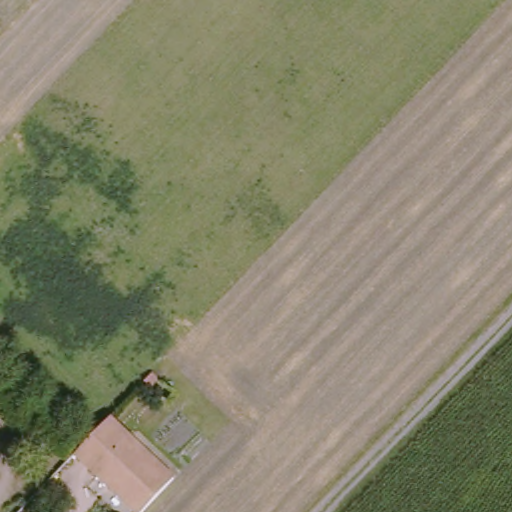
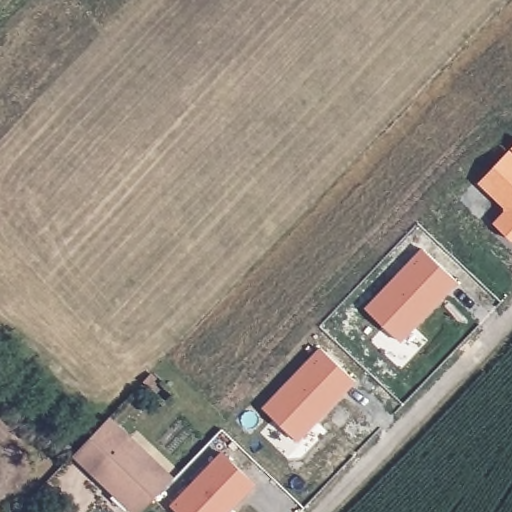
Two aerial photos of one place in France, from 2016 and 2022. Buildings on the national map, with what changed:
new [(512,153),(512,239),(510,239),(494,223),(505,211),(505,205),(479,180),(508,149),(512,153)]
new [(423,247),(457,279),(400,339),(367,307),(423,247)]
new [(317,346),(350,378),(293,438),(260,406),(317,346)]
unchanged [(173,477),(139,512),(136,512),(72,454),(107,417),(173,477)]
new [(253,482),(225,512),(180,512),(171,503),(221,450),(253,482)]

